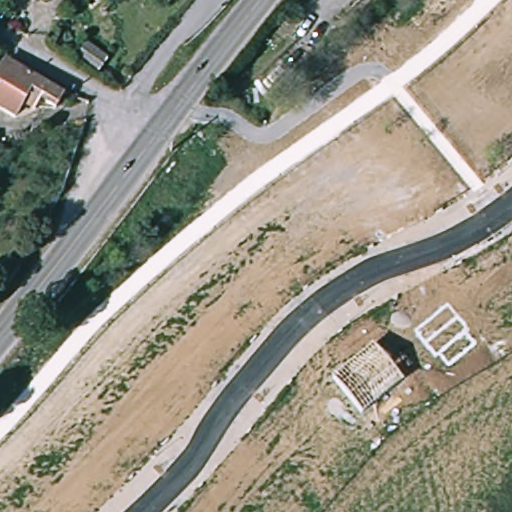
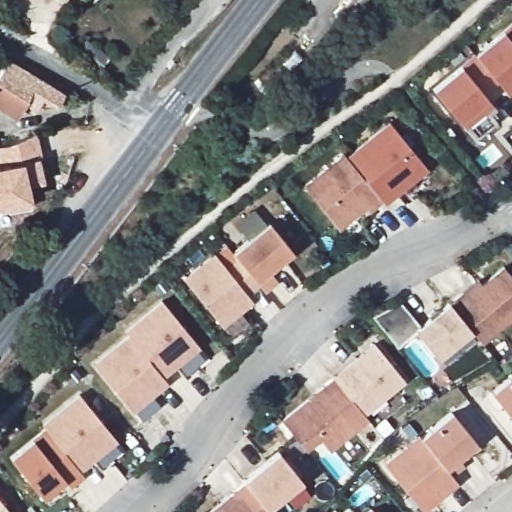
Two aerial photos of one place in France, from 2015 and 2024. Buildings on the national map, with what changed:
unchanged [(88,63),(65,45),(78,28),(100,46),(88,63)]
new [(512,30),(512,95),(509,97),(498,84),(478,59),(512,30)]
new [(478,59),(498,84),(484,96),(491,104),(485,109),(487,112),(465,130),(435,94),(478,59)]
unchanged [(25,96),(15,115),(0,108),(0,68),(3,64),(62,95),(55,111),(25,96)]
new [(383,203),(371,214),(366,209),(340,231),(307,190),(346,158),(349,162),(392,127),(429,171),(404,191),(386,206),(383,203)]
new [(40,155),(37,156),(43,180),(26,182),(30,202),(0,208),(0,142),(35,133),(40,155)]
new [(271,227),(294,253),(270,273),(280,284),(266,295),(235,257),(271,227)]
new [(249,298),(243,292),(240,295),(245,301),(218,323),(186,284),(216,259),(229,274),(241,264),(261,288),(249,298)]
new [(477,277),(481,281),(502,265),(512,277),(512,319),(482,344),(471,331),(448,301),(477,277)]
new [(438,358),(415,328),(448,301),(471,331),(438,358)]
new [(165,306),(201,350),(164,380),(131,340),(128,336),(165,306)]
new [(131,340),(164,380),(169,386),(134,415),(96,369),(131,340)]
unchanged [(373,345),(403,380),(361,413),(334,378),(373,345)]
new [(368,419),(331,450),(321,438),(306,450),(281,419),(334,378),(361,413),(368,419)]
new [(512,382),(512,417),(495,396),(512,382)]
new [(83,400),(119,444),(82,474),(49,434),(46,430),(83,400)]
new [(456,416),(479,444),(461,459),(467,467),(455,477),(425,441),(456,416)]
new [(49,434),(82,474),(86,479),(73,491),(66,483),(45,501),(13,463),(49,434)]
new [(428,512),(425,512),(389,468),(423,439),(461,485),(428,512)]
new [(281,455),(304,483),(269,512),(248,487),(246,485),(281,455)]
new [(269,512),(219,512),(248,487),(269,512)]
unchanged [(0,512),(0,500),(10,512),(0,512)]
new [(373,512),(364,512),(370,507),(373,512)]

